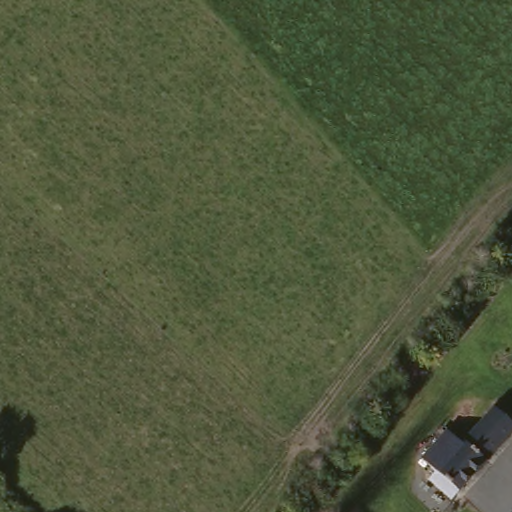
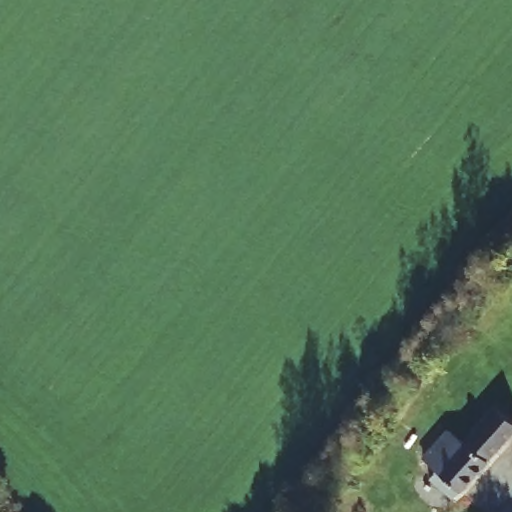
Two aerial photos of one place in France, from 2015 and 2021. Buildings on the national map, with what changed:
unchanged [(468,441),(502,400),(512,409),(512,436),(464,495),(439,476),(440,475),(468,441)]
unchanged [(440,475),(439,476),(420,461),(449,426),(468,441),(440,475)]

